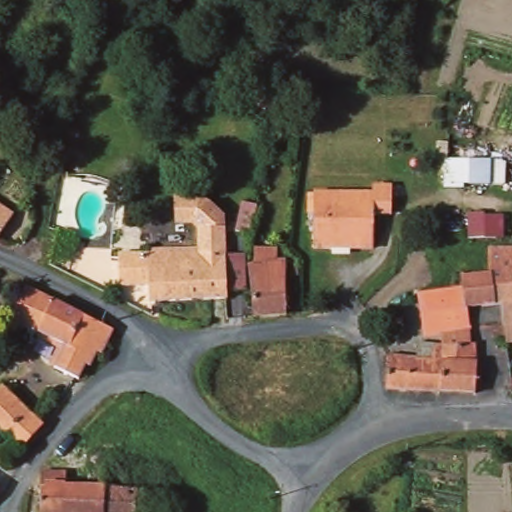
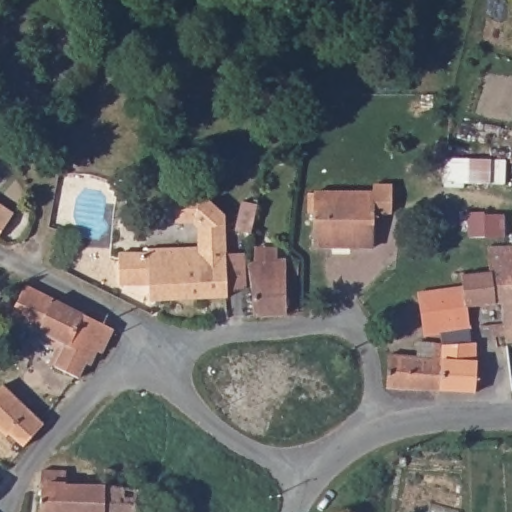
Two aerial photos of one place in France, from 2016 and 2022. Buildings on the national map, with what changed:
unchanged [(274,110),(252,99),(256,90),(259,86),(280,97),(278,101),(274,110)]
unchanged [(505,161),(505,164),(504,184),(491,184),(464,184),(463,189),(446,188),(447,159),(493,160),(505,161)]
unchanged [(314,248),(315,193),(374,193),(374,248),(351,248),(330,248),(314,248)]
unchanged [(251,290),(233,291),(233,299),(155,302),(153,285),(131,286),(125,283),(126,254),(153,254),(155,249),(208,249),(208,225),(199,219),(185,220),(179,214),(179,204),(184,198),(206,197),(229,217),(231,248),(231,256),(249,255),(251,290)]
unchanged [(257,205),(250,234),(235,230),(242,202),(257,205)]
unchanged [(16,213),(0,234),(0,203),(16,213)]
unchanged [(469,217),(504,217),(504,238),(469,238),(469,217)]
unchanged [(499,274),(496,274),(494,249),(510,248),(512,248),(512,273),(504,273),(499,274)]
unchanged [(256,281),(254,267),(262,263),(291,261),(293,314),(258,317),(256,281)]
unchanged [(511,337),(499,338),(497,327),(510,325),(508,305),(502,307),(502,306),(499,274),(504,273),(512,273),(512,340),(512,338),(511,337)]
unchanged [(467,277),(496,274),(499,274),(502,306),(502,307),(473,309),(470,294),(469,287),(467,277)]
unchanged [(62,347),(48,341),(50,335),(15,319),(32,285),(119,330),(108,354),(103,352),(95,366),(92,364),(83,378),(82,378),(60,367),(55,364),(62,347)]
unchanged [(430,336),(425,294),(469,287),(470,294),(473,309),(476,329),(465,331),(446,333),(430,336)]
unchanged [(448,344),(446,333),(465,331),(476,329),(477,344),(483,343),(482,362),(484,363),(482,393),(445,392),(448,344)]
unchanged [(422,358),(425,342),(448,344),(445,392),(393,389),(395,356),(422,358)]
unchanged [(12,436),(7,439),(0,432),(0,391),(4,387),(42,424),(44,426),(25,448),(12,436)]
unchanged [(111,487),(112,469),(145,471),(145,491),(142,490),(142,496),(142,512),(110,512),(111,487)]
unchanged [(110,512),(47,512),(48,494),(46,490),(47,471),(72,472),(72,484),(111,487),(110,512)]
unchanged [(1,493),(0,494),(0,488),(2,489),(1,493)]

